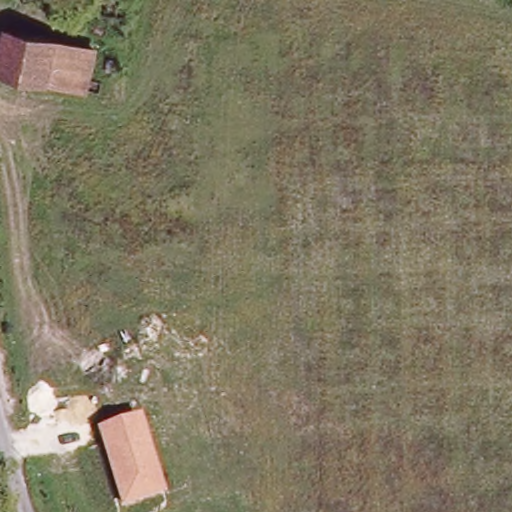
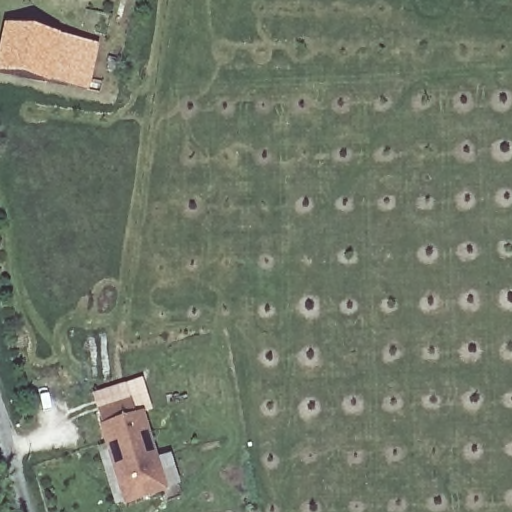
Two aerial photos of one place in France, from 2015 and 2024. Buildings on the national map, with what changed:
unchanged [(0,54),(5,26),(99,46),(90,94),(0,75),(0,54)]
unchanged [(166,492),(125,506),(99,427),(142,413),(166,492)]

